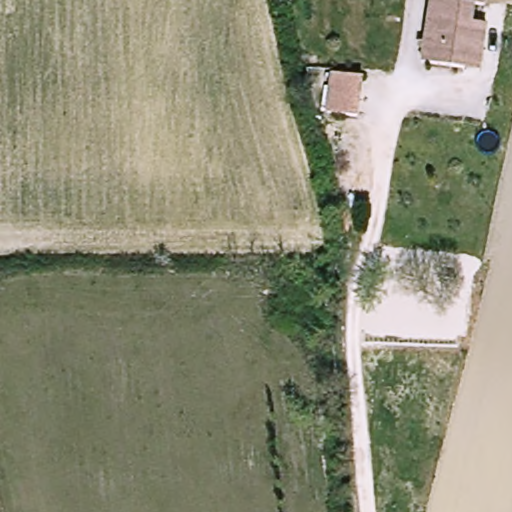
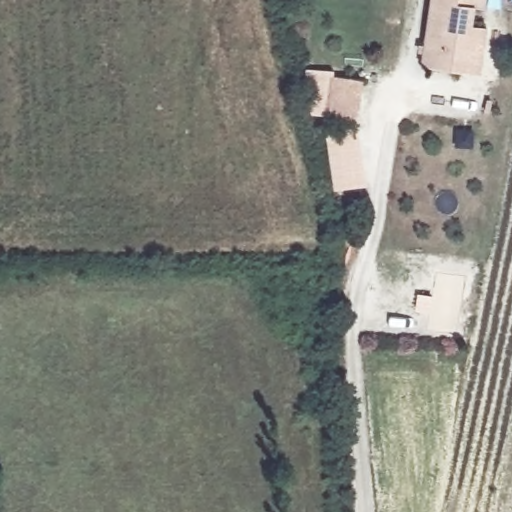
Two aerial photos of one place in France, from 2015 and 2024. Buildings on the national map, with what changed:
unchanged [(416,65),(432,0),(483,0),(480,10),(473,9),(468,30),(486,35),(474,78),(457,74),(416,65)]
unchanged [(325,105),(338,67),(366,76),(353,114),(325,105)]
new [(325,137),(359,131),(367,186),(335,192),(325,137)]

